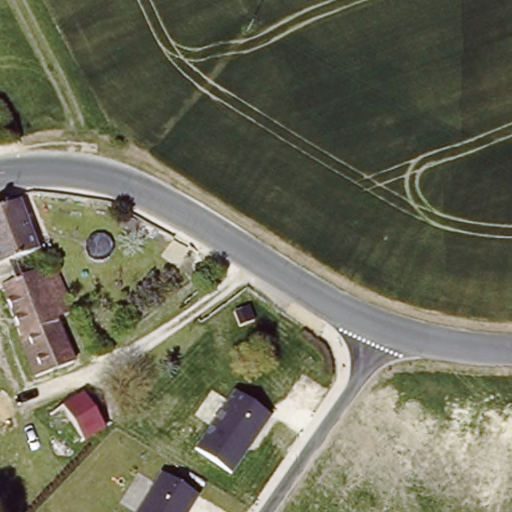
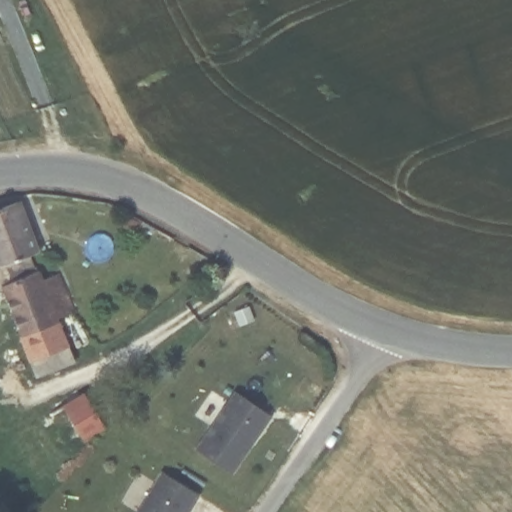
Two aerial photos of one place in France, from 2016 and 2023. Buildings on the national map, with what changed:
unchanged [(34,253),(25,257),(0,267),(0,209),(14,203),(34,253)]
unchanged [(63,303),(60,304),(82,358),(32,378),(7,320),(0,304),(0,267),(25,257),(32,271),(48,267),(63,303)]
unchanged [(231,389),(270,415),(232,472),(195,445),(231,389)]
unchanged [(108,431),(88,444),(67,407),(85,396),(108,431)]
unchanged [(198,496),(188,512),(135,512),(159,471),(198,496)]

